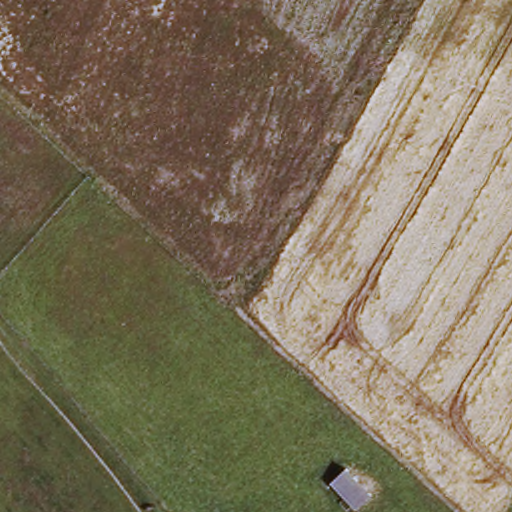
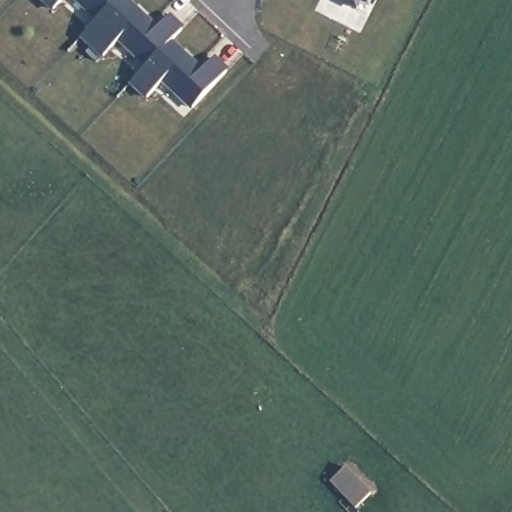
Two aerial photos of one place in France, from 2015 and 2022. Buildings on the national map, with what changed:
new [(38,0),(65,0),(51,14),(38,0)]
new [(191,112),(163,85),(144,101),(130,85),(144,69),(118,44),(102,60),(80,40),(95,23),(72,0),(129,0),(160,27),(172,15),(186,28),(173,41),(204,70),(216,59),(230,71),(191,112)]
new [(333,0),(363,0),(358,11),(333,0)]
unchanged [(341,468),(366,491),(354,506),(329,483),(341,468)]

